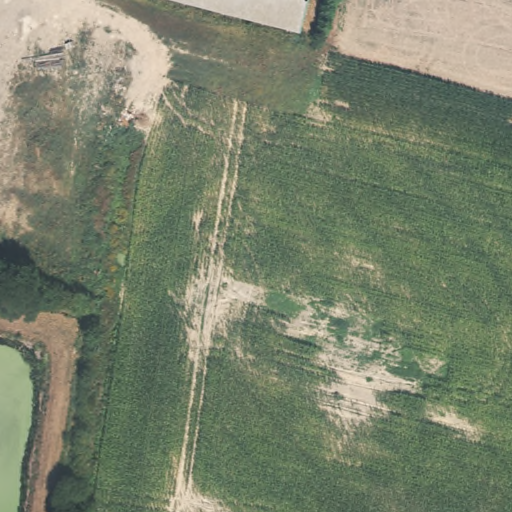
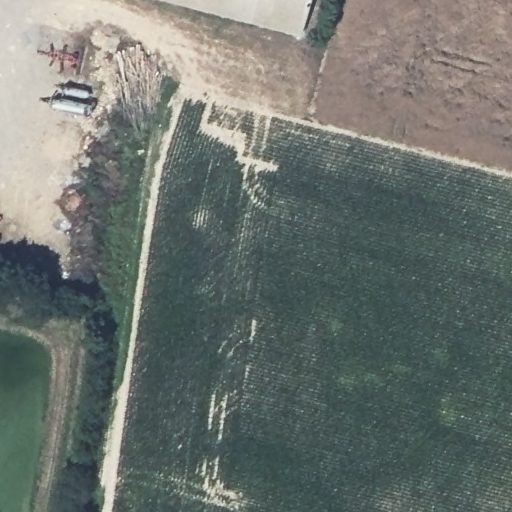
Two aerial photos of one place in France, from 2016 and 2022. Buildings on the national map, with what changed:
unchanged [(296,37),(157,0),(306,0),(296,37)]

